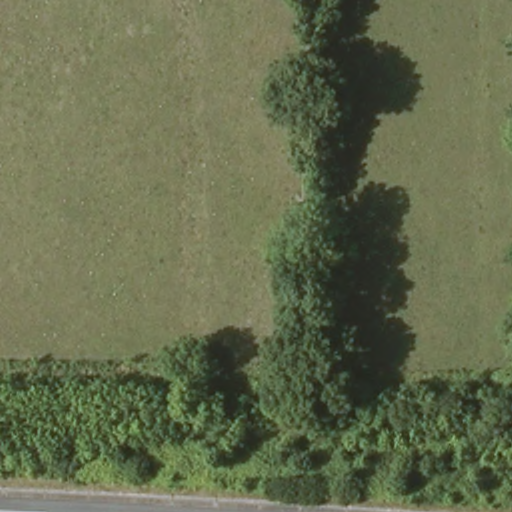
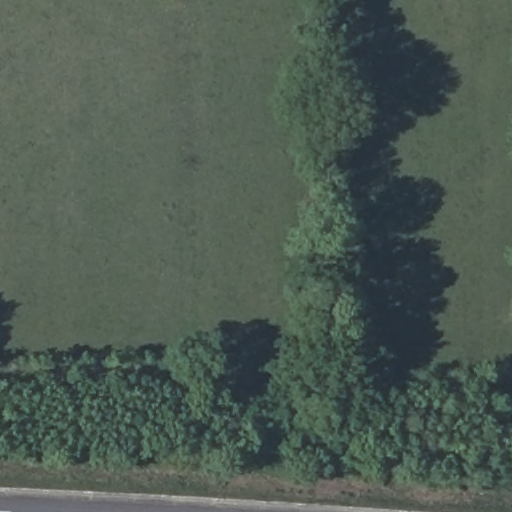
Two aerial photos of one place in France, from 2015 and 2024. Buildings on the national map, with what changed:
[]

